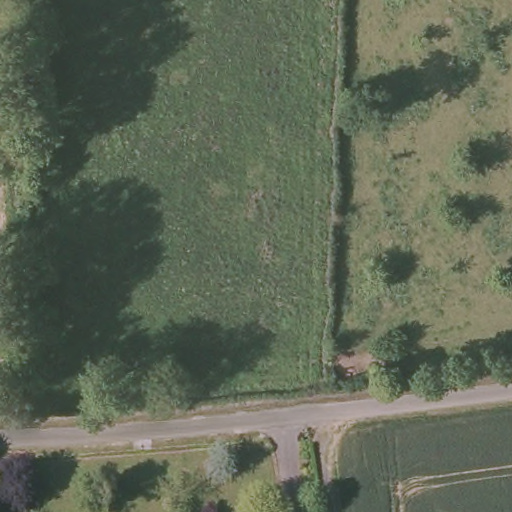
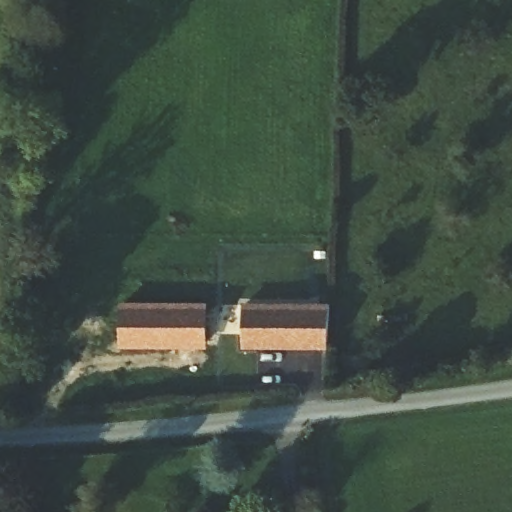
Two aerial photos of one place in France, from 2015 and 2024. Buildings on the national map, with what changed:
new [(207,347),(119,346),(120,300),(207,302),(207,347)]
new [(242,350),(242,302),(328,303),(328,350),(242,350)]

